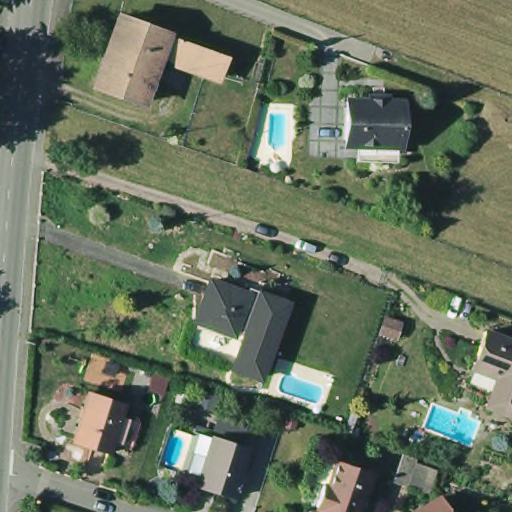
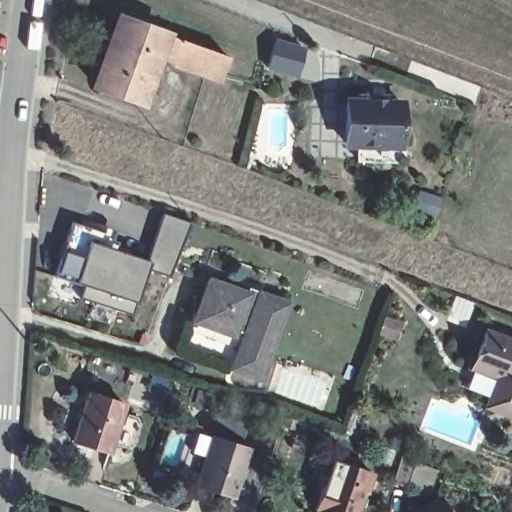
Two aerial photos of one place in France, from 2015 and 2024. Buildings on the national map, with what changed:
unchanged [(140,102),(94,87),(115,20),(162,35),(177,40),(225,56),(219,79),(169,64),(163,82),(155,80),(149,99),(142,97),(140,102)]
unchanged [(369,156),(357,156),(355,157),(355,141),(347,141),(347,138),(344,138),(344,97),(367,99),(367,96),(385,97),(385,99),(400,100),(399,140),(395,140),(394,140),(394,156),(369,156)]
new [(74,222),(112,231),(110,240),(117,242),(114,250),(149,261),(165,215),(188,222),(170,275),(147,267),(130,315),(80,297),(84,285),(55,275),(74,222)]
unchanged [(227,375),(240,341),(233,339),(230,343),(187,327),(201,290),(252,307),(255,303),(280,312),(254,385),(227,375)]
unchanged [(474,367),(483,344),(488,331),(512,339),(512,412),(490,404),(492,394),(482,390),(488,372),(474,367)]
unchanged [(123,407),(108,455),(72,443),(87,396),(123,407)]
unchanged [(199,480),(212,437),(249,448),(234,497),(215,491),(197,485),(199,480)]
unchanged [(362,493),(356,512),(321,512),(322,507),(317,507),(309,505),(325,458),(335,462),(372,475),(365,493),(362,493)]
unchanged [(446,512),(405,512),(435,493),(446,512)]

